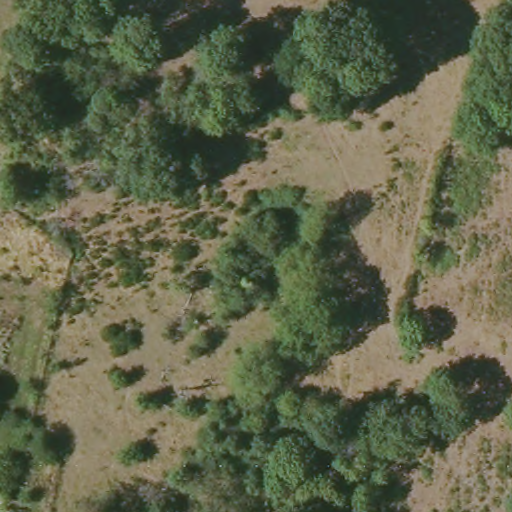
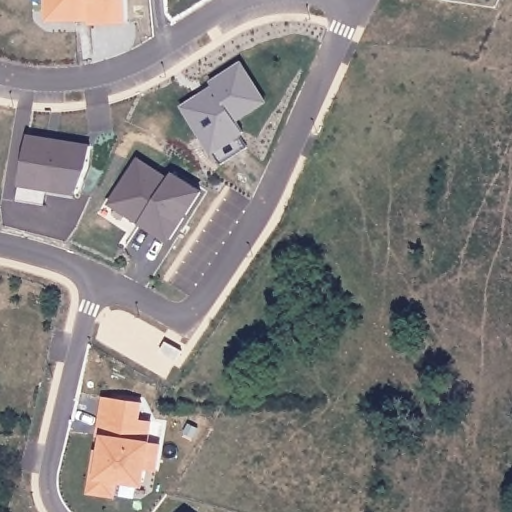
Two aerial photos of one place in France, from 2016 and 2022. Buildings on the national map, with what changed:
new [(50,0),(127,0),(128,24),(90,25),(89,15),(78,16),(78,21),(51,22),(50,0)]
new [(213,155),(180,108),(213,88),(209,83),(241,62),(268,104),(236,124),(243,136),(246,148),(220,165),(213,155)]
new [(21,186),(29,136),(92,144),(87,170),(76,197),(21,186)]
new [(131,156),(156,169),(122,232),(95,218),(131,156)]
new [(147,233),(138,247),(128,240),(169,172),(203,192),(170,245),(147,233)]
new [(94,449),(98,450),(100,435),(95,435),(101,396),(143,403),(141,419),(151,421),(151,441),(151,444),(161,445),(158,471),(146,469),(145,487),(119,482),(116,499),(86,494),(94,449)]

